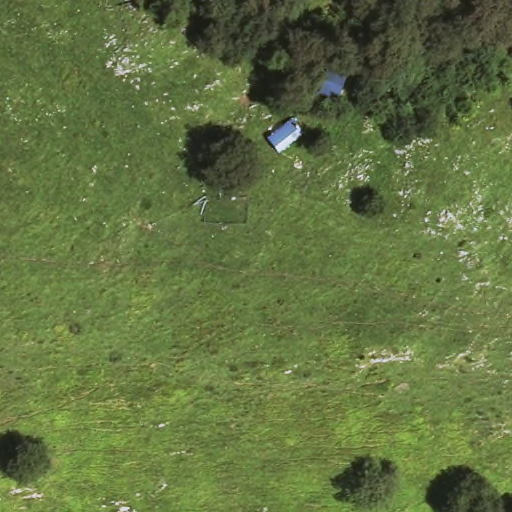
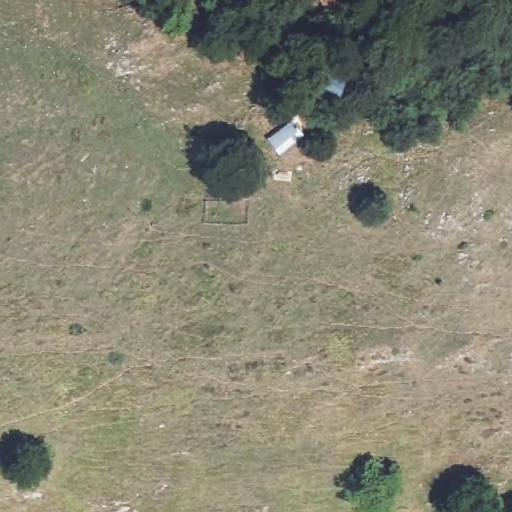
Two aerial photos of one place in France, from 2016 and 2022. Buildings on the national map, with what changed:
unchanged [(278,129),(292,116),(303,131),(276,154),(264,139),(278,129)]

